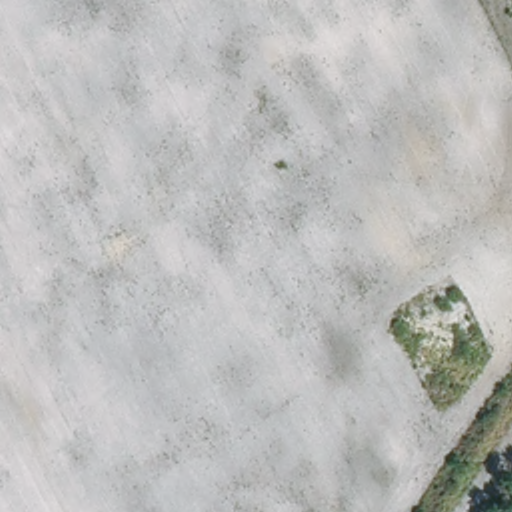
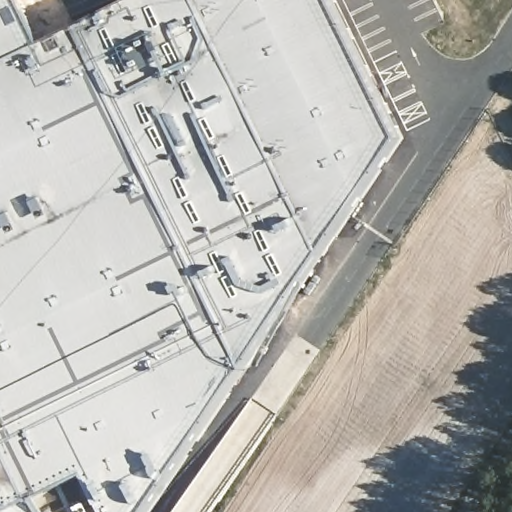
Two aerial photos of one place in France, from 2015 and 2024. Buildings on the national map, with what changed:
new [(151,512),(0,512),(0,0),(67,0),(80,28),(137,0),(336,0),(404,137),(151,512)]

